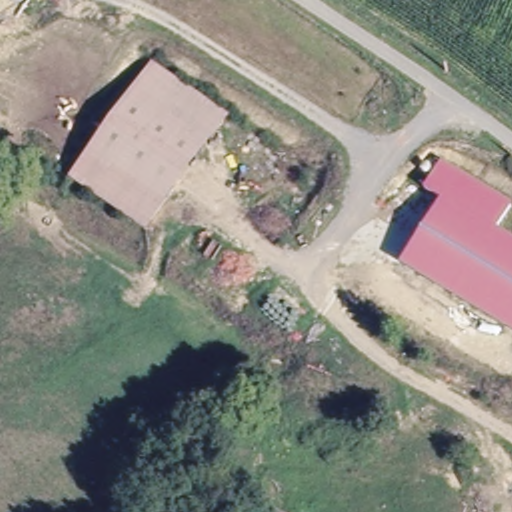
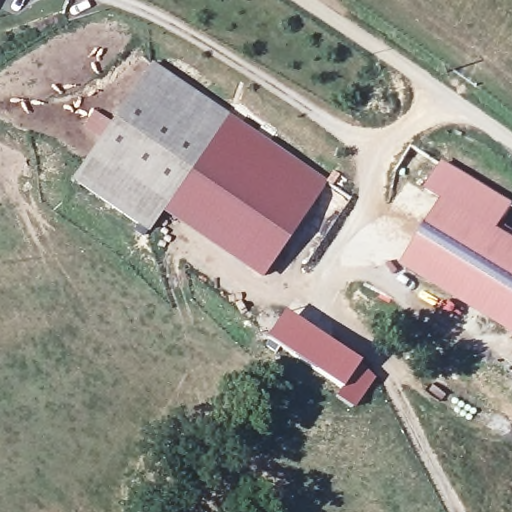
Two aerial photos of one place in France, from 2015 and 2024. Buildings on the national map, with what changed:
unchanged [(157,60),(231,114),(150,228),(147,231),(74,179),(77,174),(157,60)]
new [(328,181),(260,280),(160,214),(231,114),(328,181)]
unchanged [(512,203),(496,230),(512,239),(512,336),(399,268),(442,201),(422,191),(429,180),(417,171),(425,160),(436,168),(440,161),(512,201),(512,203)]
new [(283,313),(359,364),(340,390),(265,340),(283,313)]
demolished [(261,500),(282,512),(254,512),(261,500)]

